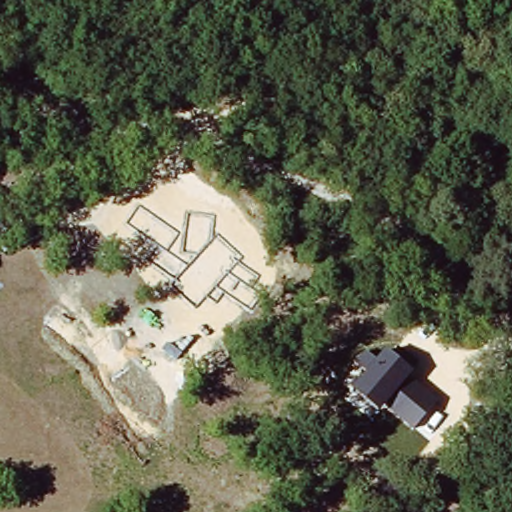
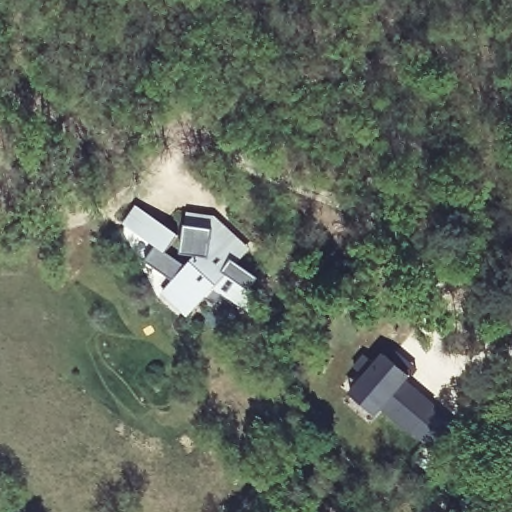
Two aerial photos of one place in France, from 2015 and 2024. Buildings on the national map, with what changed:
new [(178,237),(167,252),(188,266),(196,257),(181,255),(186,226),(188,211),(218,217),(251,249),(239,263),(259,278),(250,289),(256,294),(243,310),(213,289),(188,318),(163,293),(173,281),(146,262),(157,248),(123,224),(136,207),(178,237)]
unchanged [(409,378),(404,384),(433,407),(412,433),(383,408),(376,416),(349,392),(364,375),(356,369),(365,358),(373,365),(381,354),(409,378)]

